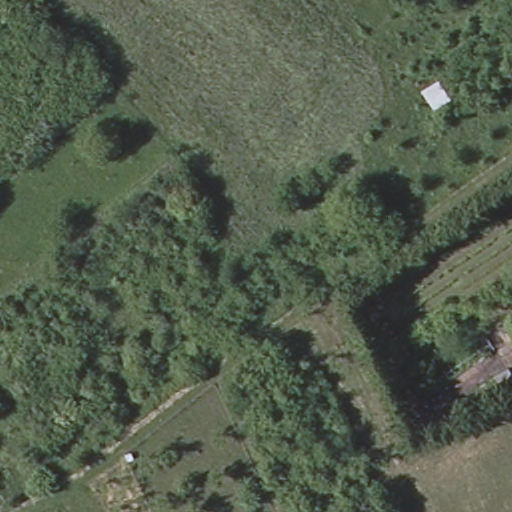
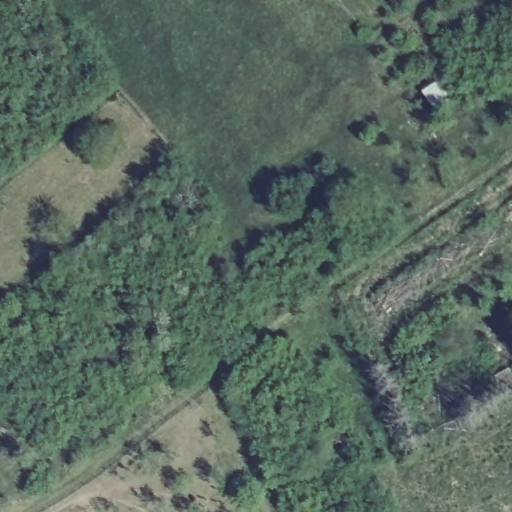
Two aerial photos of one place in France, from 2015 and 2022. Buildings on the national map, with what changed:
unchanged [(488,340),(497,353),(424,402),(415,389),(488,340)]

